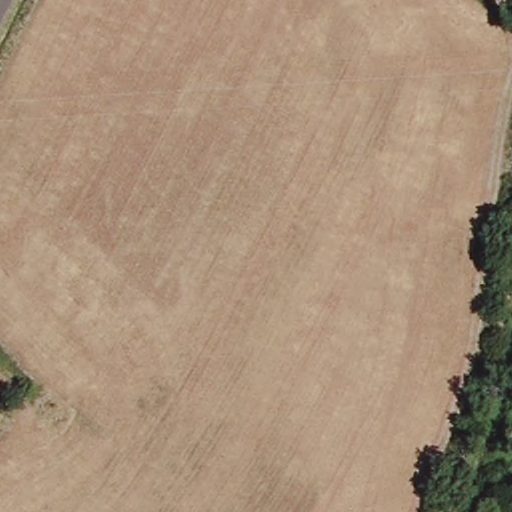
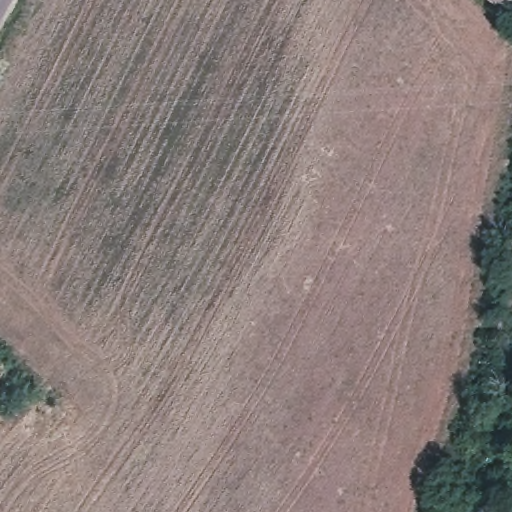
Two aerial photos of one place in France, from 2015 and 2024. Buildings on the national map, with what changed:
unchanged [(504,8),(491,0),(508,0),(504,8)]

